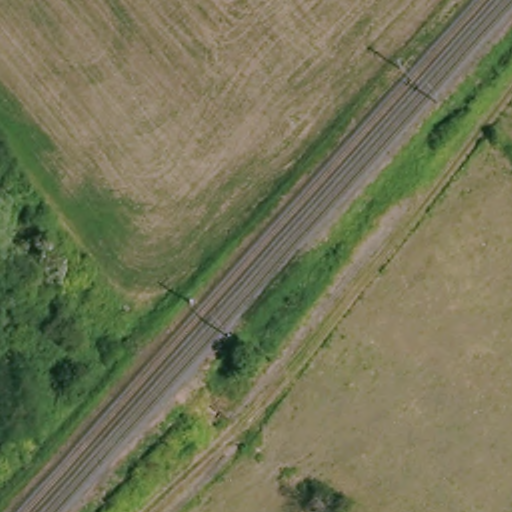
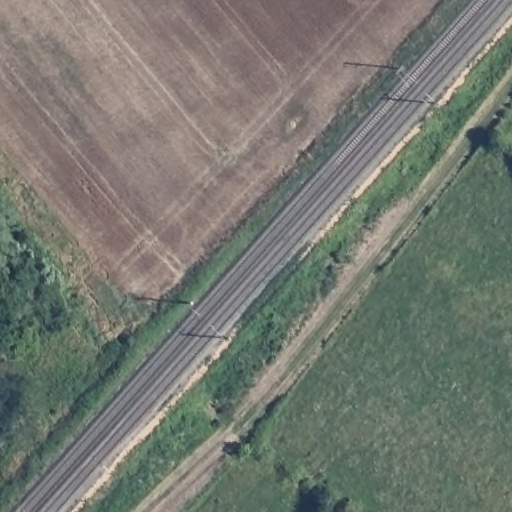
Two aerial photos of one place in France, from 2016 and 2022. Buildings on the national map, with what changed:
unchanged [(313,128),(317,132),(312,136),(308,133),(313,128)]
unchanged [(148,309),(152,313),(148,318),(144,314),(148,309)]

